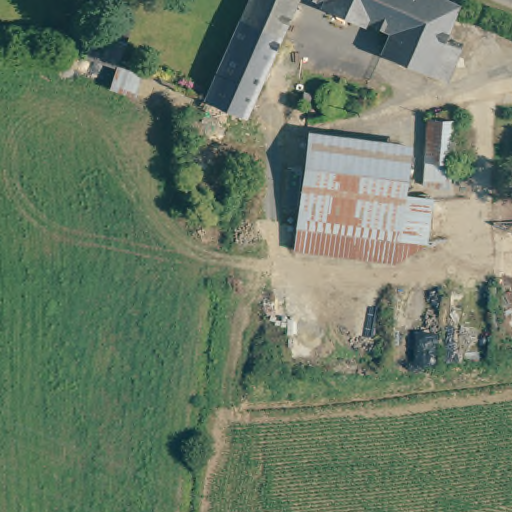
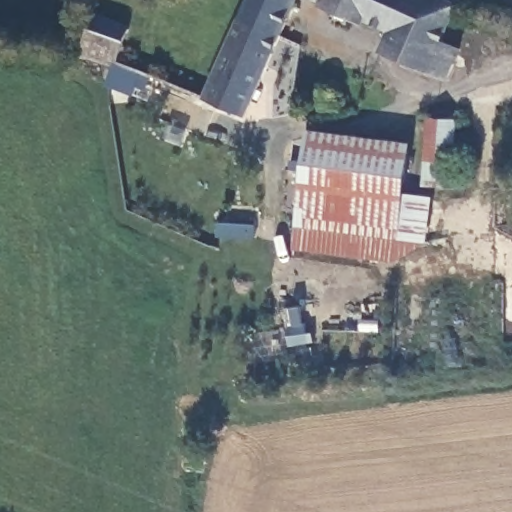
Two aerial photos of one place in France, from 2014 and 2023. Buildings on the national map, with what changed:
unchanged [(65,9),(82,17),(90,0),(97,0),(126,13),(108,48),(76,32),(57,30),(55,30),(65,9)]
unchanged [(244,113),(240,109),(203,94),(246,0),(297,0),(244,113)]
unchanged [(448,77),(427,67),(383,47),(389,27),(329,0),(456,0),(460,2),(441,38),(462,48),(448,77)]
unchanged [(453,162),(422,158),(430,114),(458,117),(453,162)]
unchanged [(430,242),(401,238),(398,256),(298,239),(304,204),(306,190),(315,135),(415,152),(408,195),(436,201),(430,242)]

